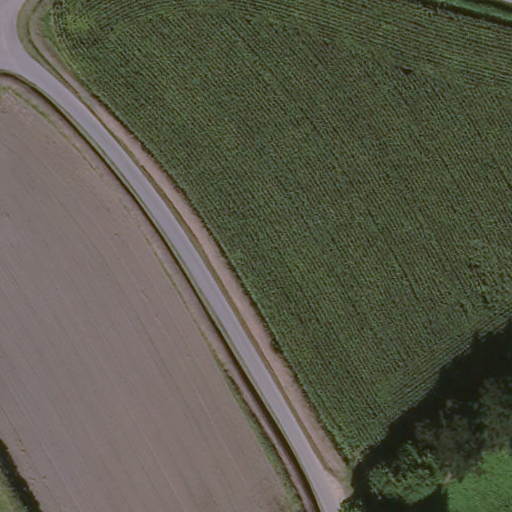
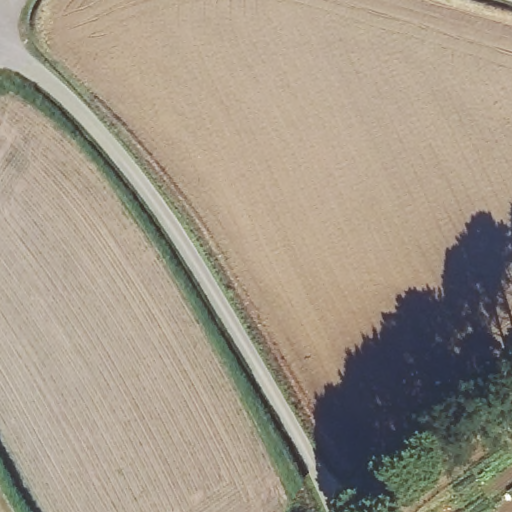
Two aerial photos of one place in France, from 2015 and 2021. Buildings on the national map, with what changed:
[]

